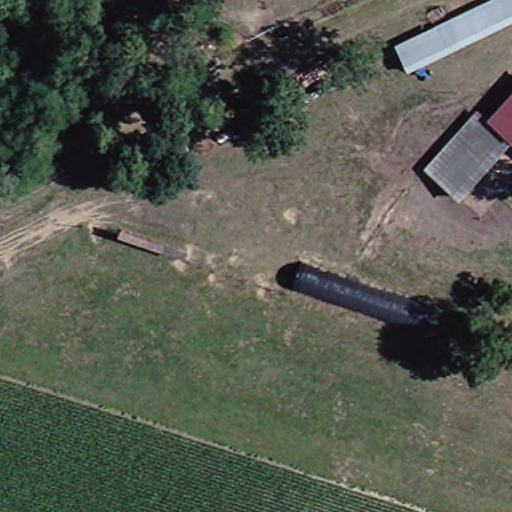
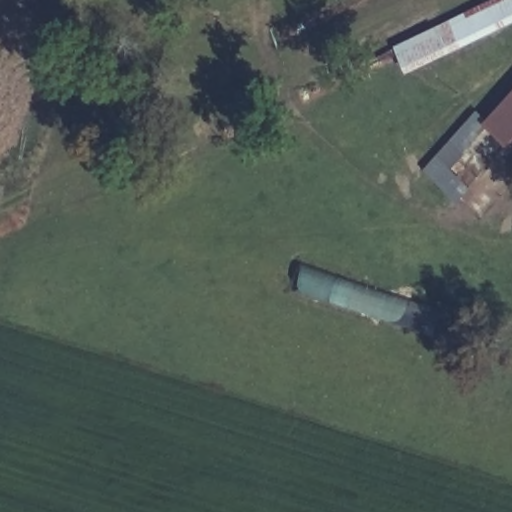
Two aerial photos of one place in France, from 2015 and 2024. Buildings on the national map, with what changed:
unchanged [(496,0),(505,0),(507,4),(512,1),(512,20),(408,71),(396,45),(487,4),(496,0)]
unchanged [(485,121),(512,90),(512,144),(510,141),(460,198),(426,168),(473,114),(485,121)]
unchanged [(442,309),(433,339),(318,299),(327,270),(442,309)]

